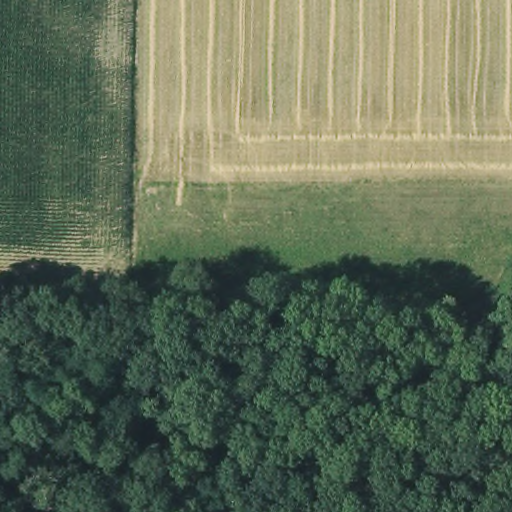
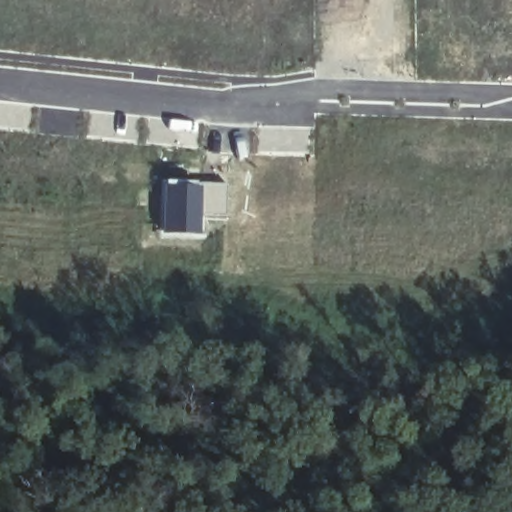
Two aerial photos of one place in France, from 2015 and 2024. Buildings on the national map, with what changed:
new [(202,185),(226,186),(226,223),(200,223),(201,238),(162,236),(162,184),(202,185)]

